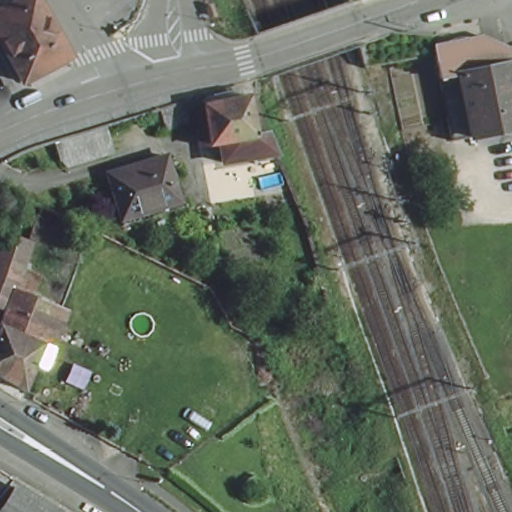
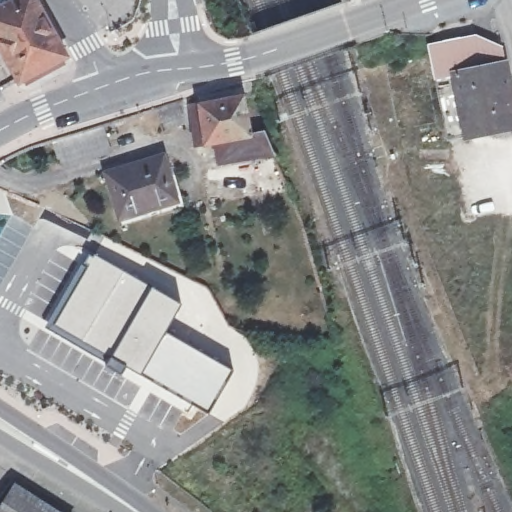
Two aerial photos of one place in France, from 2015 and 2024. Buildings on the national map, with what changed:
unchanged [(22,81),(0,39),(0,13),(27,0),(41,0),(71,57),(22,81)]
unchanged [(503,55),(512,106),(512,135),(449,147),(431,52),(477,42),(481,59),(503,55)]
unchanged [(272,141),(279,160),(225,169),(222,149),(201,152),(195,113),(260,101),(272,141)]
unchanged [(185,108),(188,121),(164,129),(160,115),(185,108)]
unchanged [(92,121),(101,147),(55,160),(47,135),(92,121)]
unchanged [(109,195),(102,171),(158,152),(168,181),(109,195)]
unchanged [(175,204),(118,223),(109,195),(168,181),(175,204)]
new [(183,305),(167,332),(234,370),(208,416),(53,325),(94,253),(183,305)]
demolished [(22,395),(0,383),(0,310),(5,293),(27,302),(53,313),(33,368),(22,395)]
demolished [(1,499),(0,498),(0,479),(10,485),(1,499)]
unchanged [(45,512),(0,512),(12,491),(45,512)]

